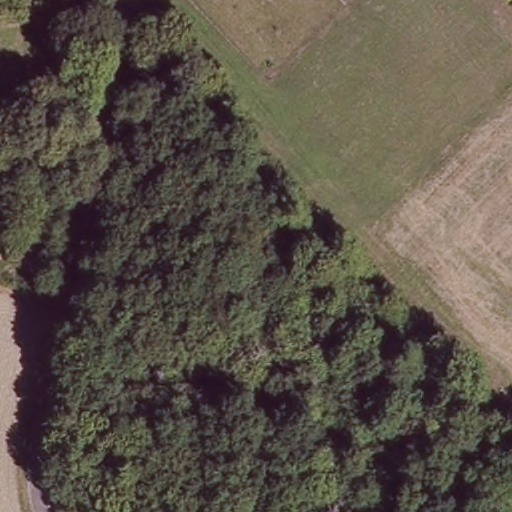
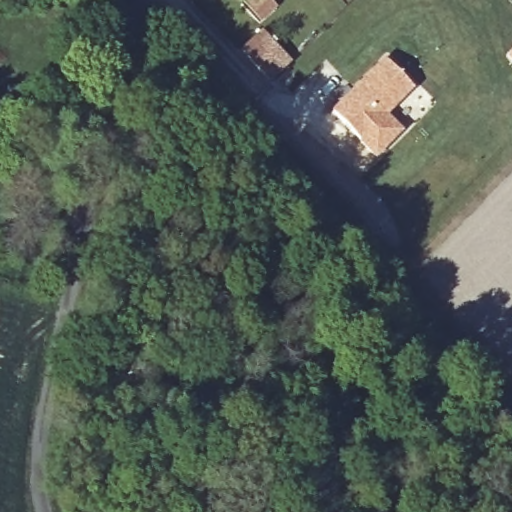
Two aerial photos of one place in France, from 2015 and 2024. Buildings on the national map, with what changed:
new [(271,81),(240,46),(262,26),(293,61),(271,81)]
new [(383,58),(412,88),(387,114),(402,130),(376,156),(361,141),(362,139),(332,109),(383,58)]

